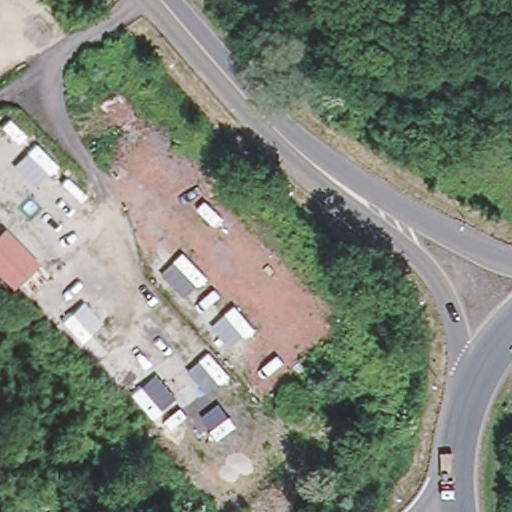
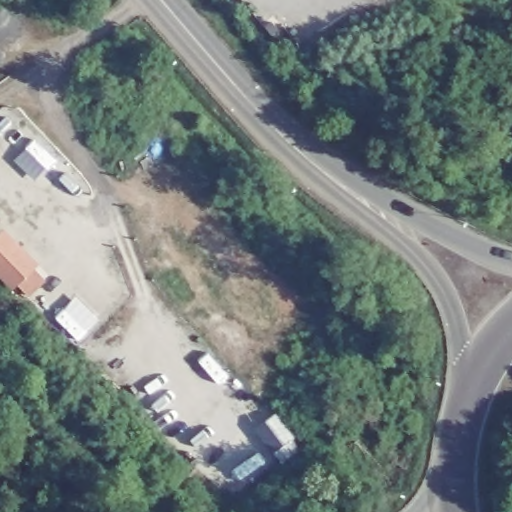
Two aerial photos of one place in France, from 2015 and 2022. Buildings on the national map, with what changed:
unchanged [(0,234),(6,228),(40,263),(34,270),(45,280),(29,295),(19,285),(14,289),(0,274),(0,234)]

